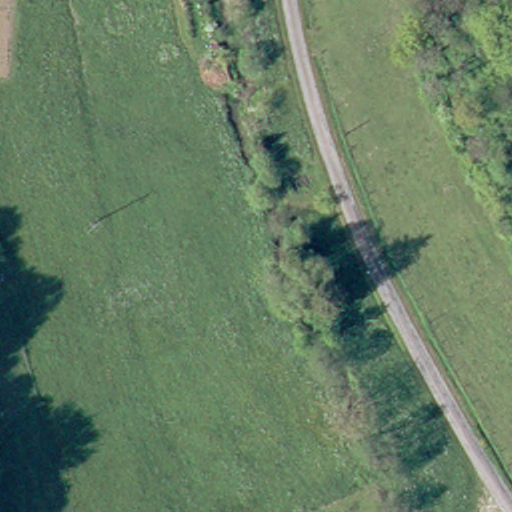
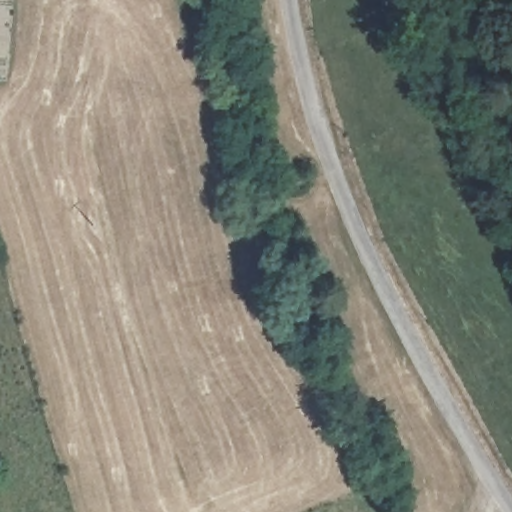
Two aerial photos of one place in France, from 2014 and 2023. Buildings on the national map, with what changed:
unchanged [(260,283),(255,262),(264,260),(270,280),(260,283)]

